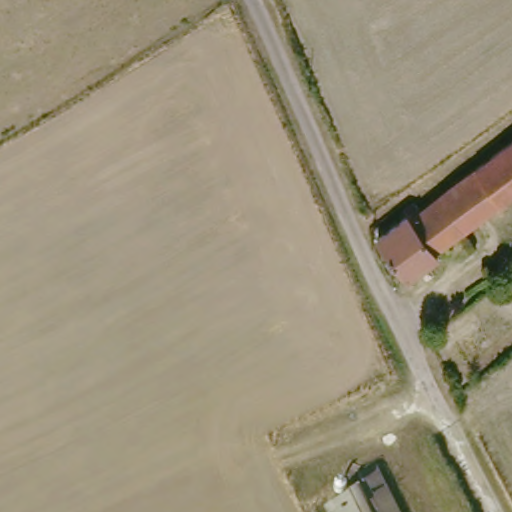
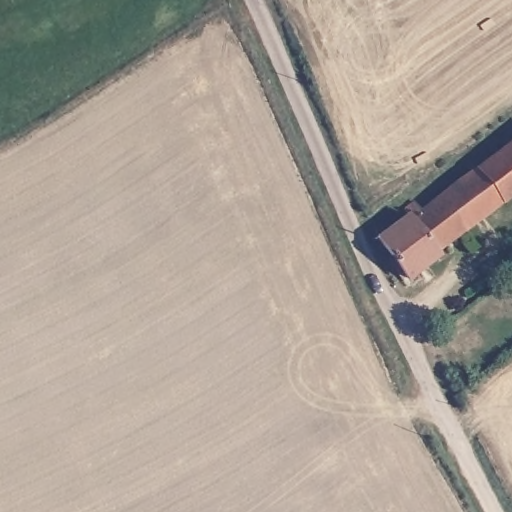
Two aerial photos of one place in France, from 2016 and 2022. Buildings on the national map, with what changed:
unchanged [(402,211),(397,204),(407,196),(416,206),(512,132),(512,194),(400,279),(369,236),(402,211)]
demolished [(379,473),(398,512),(325,512),(320,501),(379,473)]

